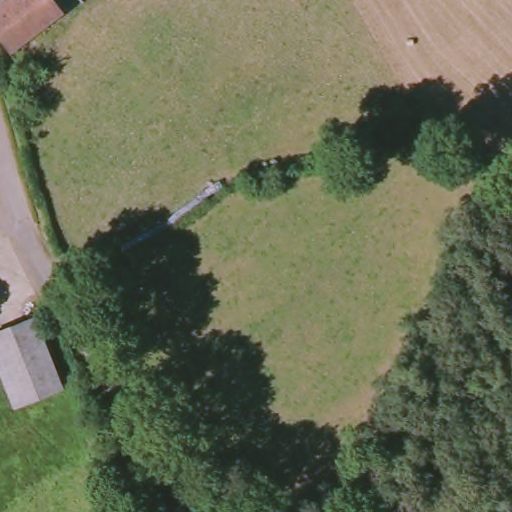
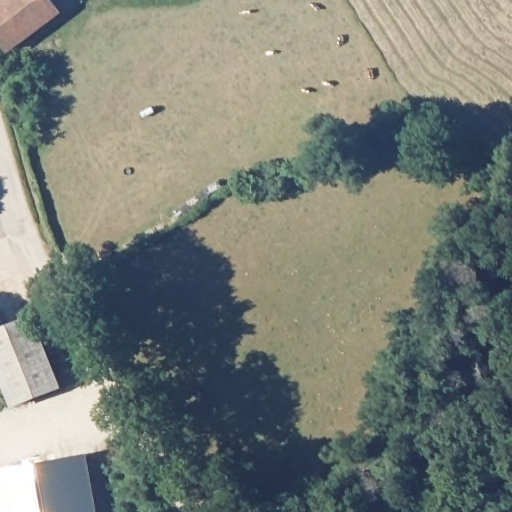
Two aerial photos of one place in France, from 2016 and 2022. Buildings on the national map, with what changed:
unchanged [(15,57),(0,37),(0,7),(10,0),(59,0),(70,15),(15,57)]
unchanged [(21,405),(0,356),(0,332),(36,316),(67,386),(21,405)]
new [(0,512),(0,471),(88,453),(99,512),(0,512)]

